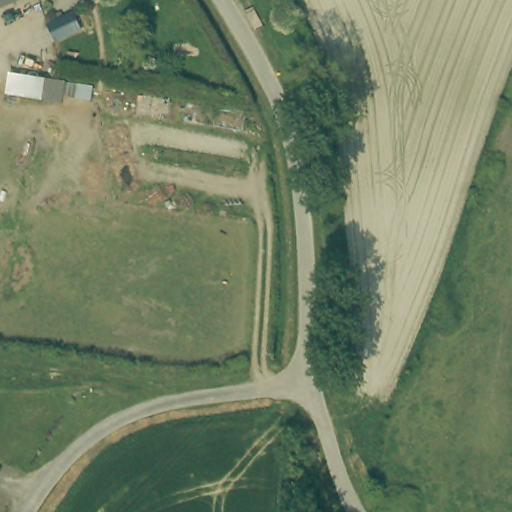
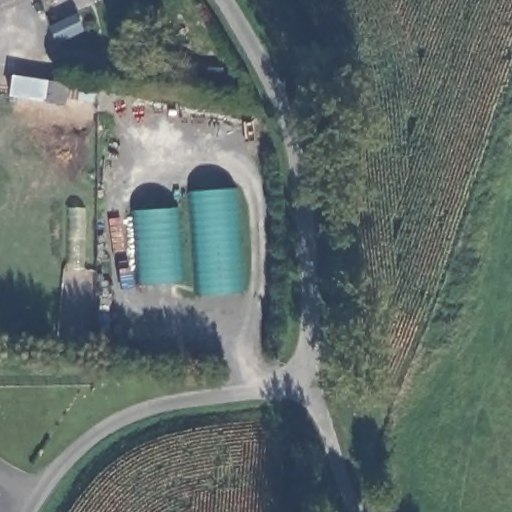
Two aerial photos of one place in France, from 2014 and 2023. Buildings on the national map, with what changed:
unchanged [(0,15),(0,0),(35,0),(0,15)]
new [(78,14),(87,33),(62,45),(53,25),(78,14)]
new [(16,76),(100,89),(98,101),(72,97),(71,104),(13,95),(16,76)]
new [(186,191),(233,188),(240,291),(193,295),(186,191)]
new [(132,210),(177,207),(182,281),(140,285),(132,210)]

